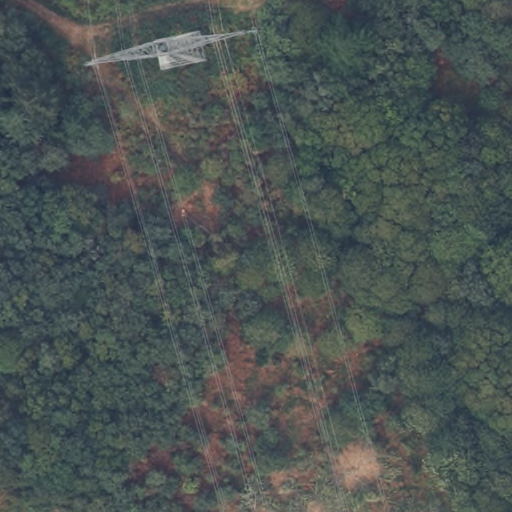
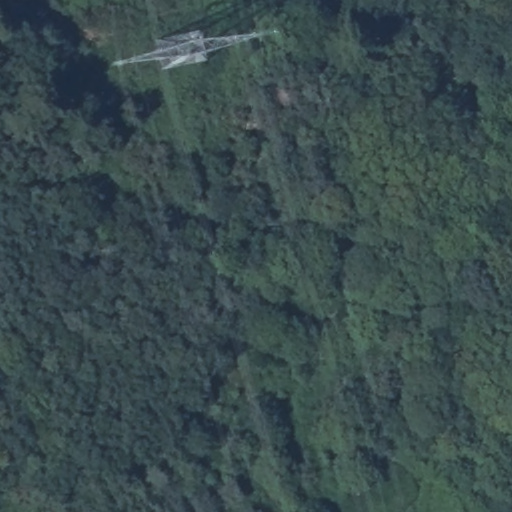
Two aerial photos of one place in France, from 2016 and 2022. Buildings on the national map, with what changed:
[]

